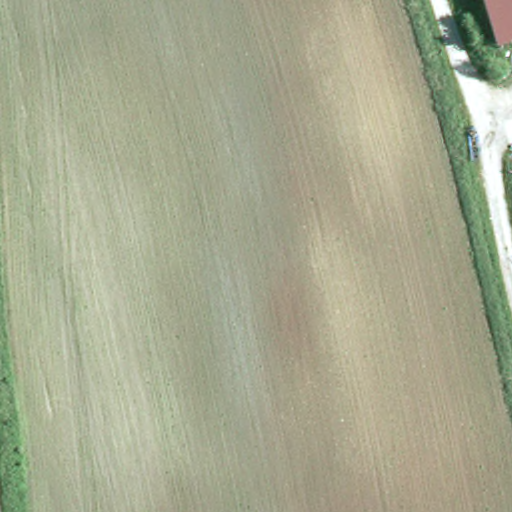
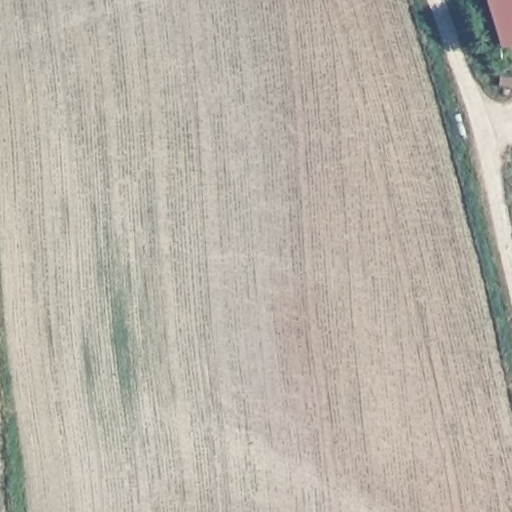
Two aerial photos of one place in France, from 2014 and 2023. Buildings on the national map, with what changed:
unchanged [(512,0),(512,49),(503,52),(486,0),(512,0)]

